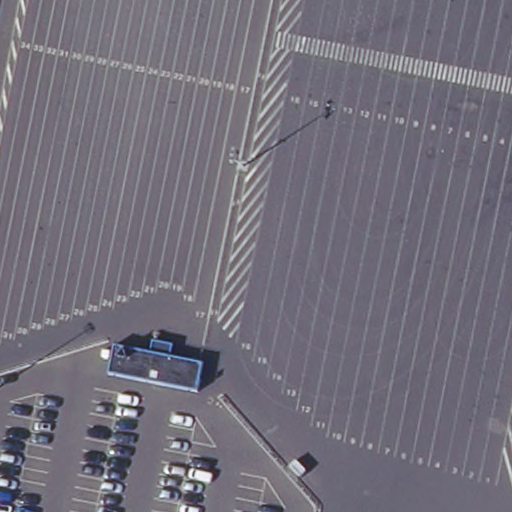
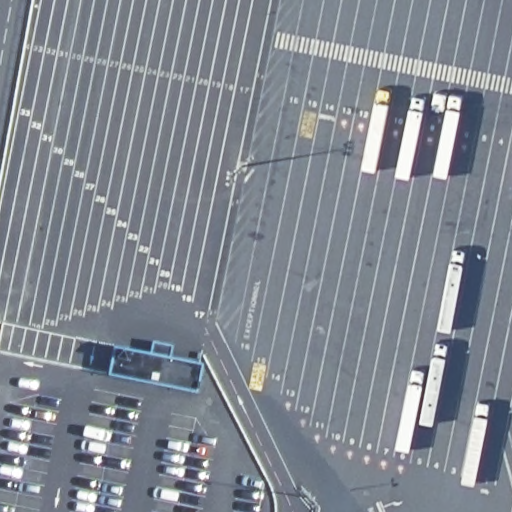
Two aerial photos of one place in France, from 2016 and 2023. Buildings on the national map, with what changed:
unchanged [(115,346),(150,354),(151,344),(171,347),(170,359),(202,364),(198,394),(109,376),(115,346)]

